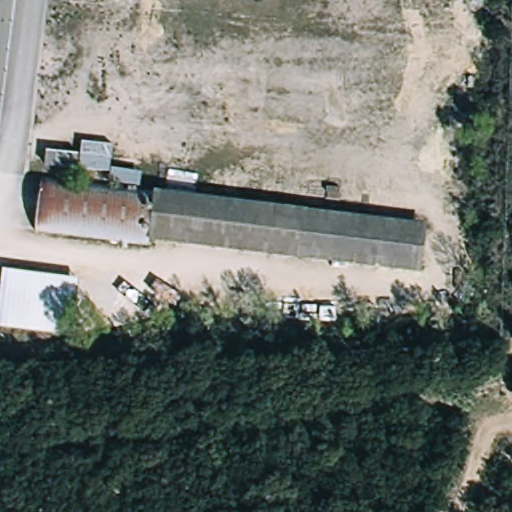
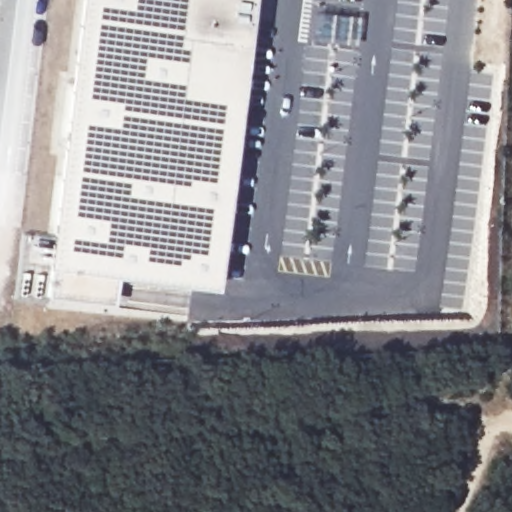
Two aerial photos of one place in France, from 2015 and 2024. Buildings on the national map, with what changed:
new [(120,277),(116,307),(47,298),(50,267),(82,0),(254,0),(219,289),(120,277)]
demolished [(65,270),(60,309),(47,307),(45,325),(0,320),(1,314),(1,310),(3,298),(7,263),(65,270)]

